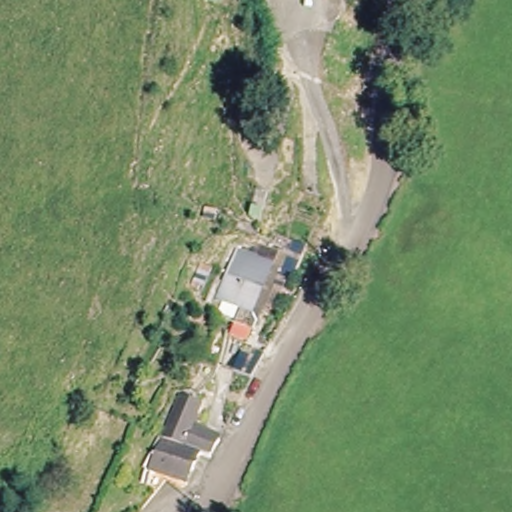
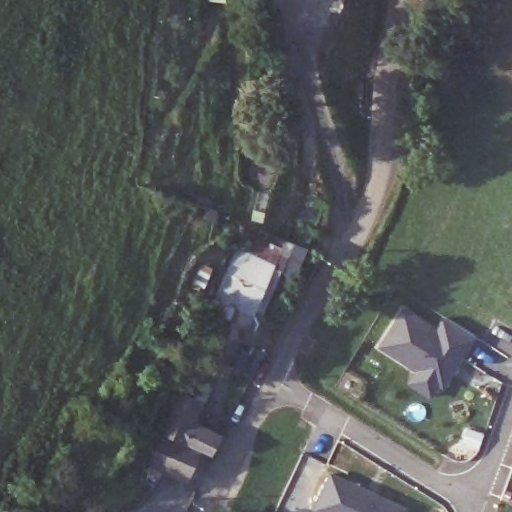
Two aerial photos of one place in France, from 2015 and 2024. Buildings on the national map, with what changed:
unchanged [(224,299),(247,255),(284,274),(263,319),(224,299)]
new [(436,327),(442,316),(476,335),(444,387),(440,385),(433,396),(407,382),(416,369),(378,347),(402,307),(436,327)]
unchanged [(187,402),(208,410),(200,429),(229,442),(220,461),(210,456),(180,442),(170,437),(187,402)]
unchanged [(197,485),(156,466),(170,437),(180,442),(210,456),(197,485)]
new [(368,492),(367,493),(374,497),(376,495),(406,508),(404,512),(317,512),(314,511),(330,473),(368,492)]

